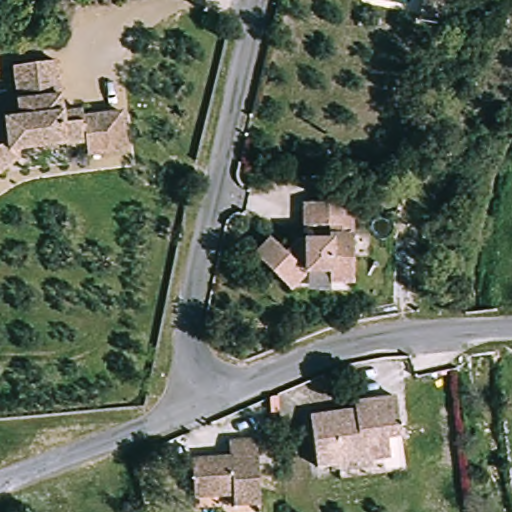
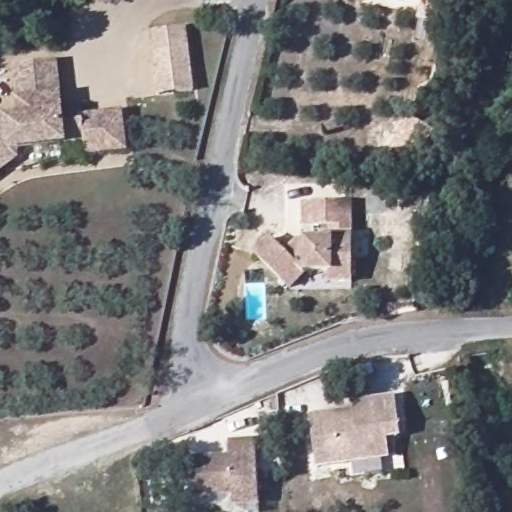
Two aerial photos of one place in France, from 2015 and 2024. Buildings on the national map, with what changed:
new [(185,28),(190,62),(158,66),(153,32),(185,28)]
unchanged [(83,118),(120,113),(125,149),(87,154),(85,142),(16,151),(0,163),(0,121),(19,118),(13,68),(52,62),(59,114),(82,111),(83,118)]
new [(190,62),(195,92),(162,96),(158,66),(190,62)]
unchanged [(16,151),(18,159),(0,174),(0,163),(16,151)]
unchanged [(282,252),(294,243),(318,246),(319,239),(335,239),(335,231),(305,229),(306,207),(352,210),(351,235),(346,290),(327,289),(327,274),(307,272),(287,290),(251,248),(266,235),(282,252)]
unchanged [(321,462),(310,412),(356,403),(354,394),(364,393),(395,387),(401,425),(409,458),(395,461),(344,472),(341,458),(321,462)]
unchanged [(229,445),(251,443),(257,505),(233,507),(231,496),(193,499),(188,462),(230,457),(229,445)]

